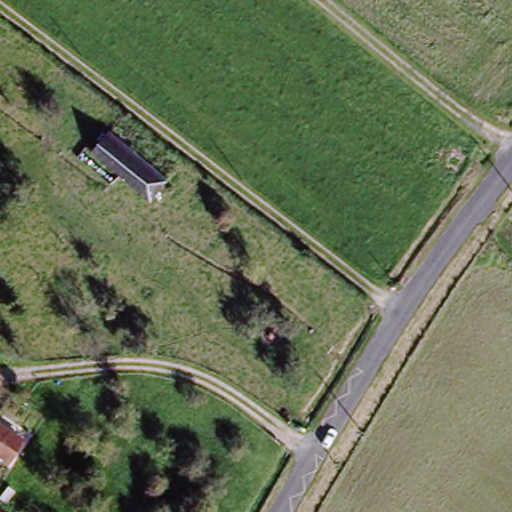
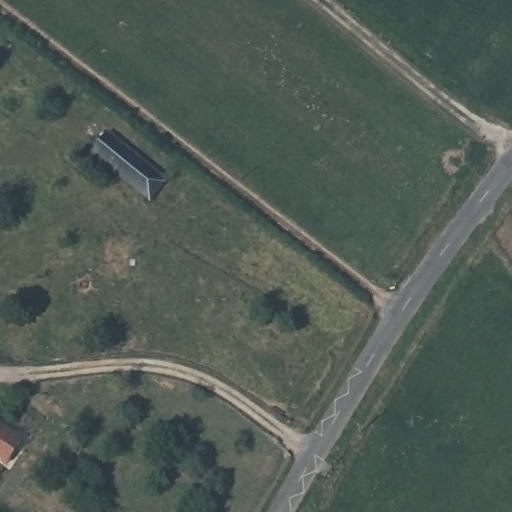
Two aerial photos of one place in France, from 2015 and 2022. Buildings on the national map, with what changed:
unchanged [(152,193),(140,182),(96,147),(109,128),(153,165),(167,176),(152,193)]
unchanged [(0,458),(0,426),(16,437),(0,458)]

